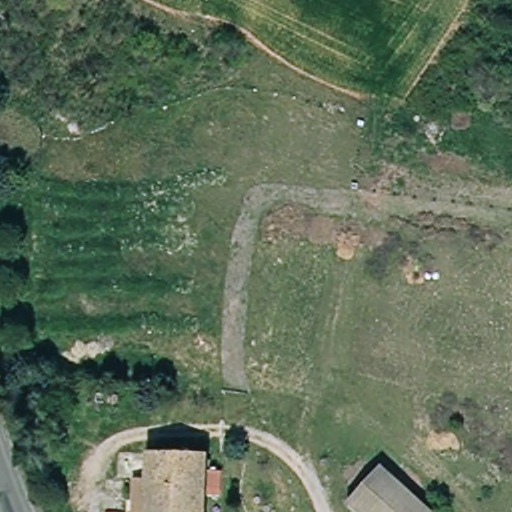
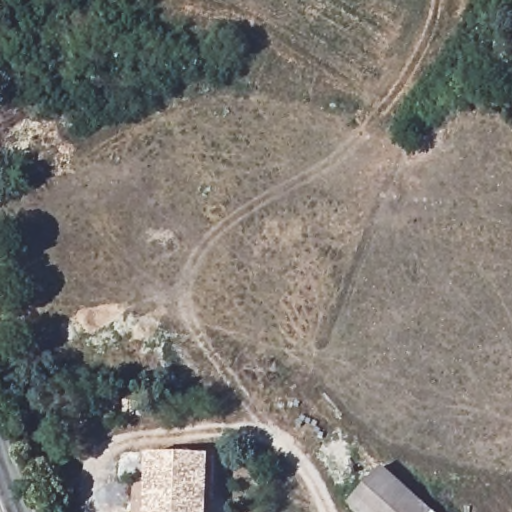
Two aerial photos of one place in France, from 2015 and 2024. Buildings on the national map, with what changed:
unchanged [(148,457),(204,460),(203,470),(217,471),(216,498),(201,497),(200,512),(146,512),(148,457)]
unchanged [(348,502),(383,467),(427,512),(358,512),(348,502)]

